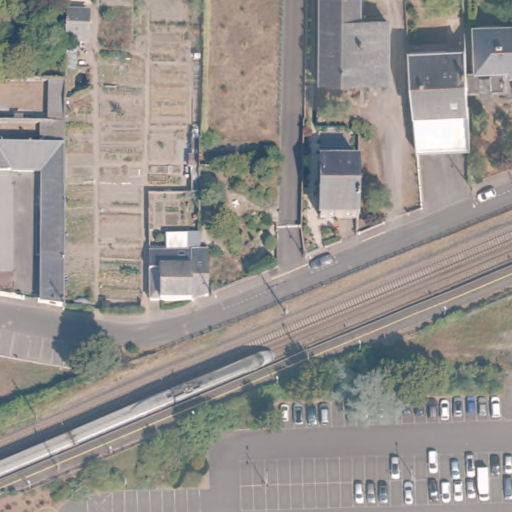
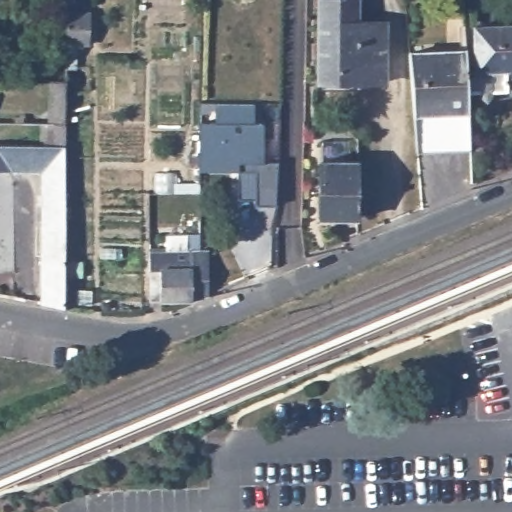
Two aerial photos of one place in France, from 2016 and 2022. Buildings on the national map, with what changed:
unchanged [(364,23),(391,23),(392,84),(363,84),(363,94),(355,93),(355,85),(323,84),(323,19),(324,0),(364,0),(364,23)]
unchanged [(99,44),(80,44),(80,17),(99,18),(99,44)]
unchanged [(509,92),(495,91),(495,98),(487,103),(479,96),(478,92),(472,91),(471,76),(477,69),(477,26),(512,27),(512,77),(508,76),(509,92)]
unchanged [(422,154),(421,138),(417,84),(416,55),(470,54),(471,76),(472,91),(475,153),(422,154)]
unchanged [(50,120),(51,81),(70,81),(68,144),(40,144),(41,120),(50,120)]
new [(262,161),(277,160),(276,205),(255,204),(255,197),(238,196),(238,171),(198,170),(198,122),(214,122),(214,102),(255,103),(254,121),(263,121),(262,161)]
unchanged [(68,144),(66,251),(65,304),(42,300),(44,172),(0,171),(0,144),(40,144),(68,144)]
unchanged [(357,221),(320,221),(321,166),(358,165),(357,221)]
unchanged [(216,303),(206,307),(156,306),(155,241),(206,240),(206,256),(215,256),(216,303)]
demolished [(512,376),(502,374),(500,354),(512,352),(512,376)]

